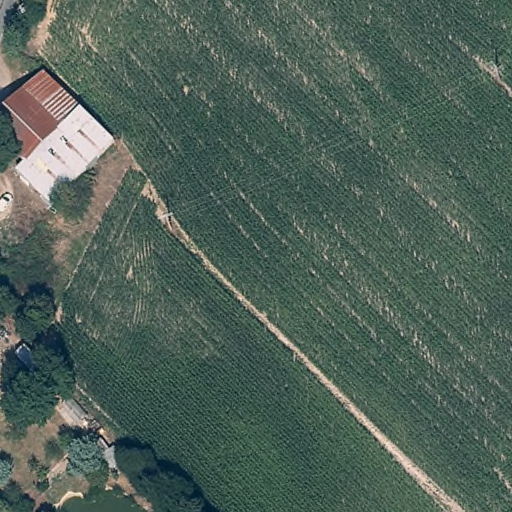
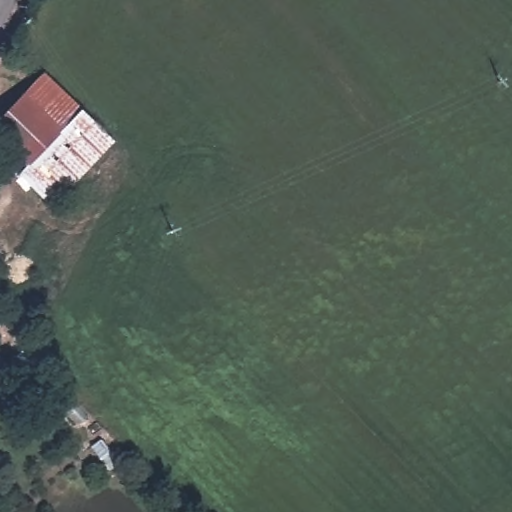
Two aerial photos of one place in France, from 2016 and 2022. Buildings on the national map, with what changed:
unchanged [(7,150),(0,142),(0,119),(48,72),(83,108),(23,165),(7,150)]
unchanged [(46,208),(0,159),(0,158),(7,150),(23,165),(83,108),(116,142),(46,208)]

